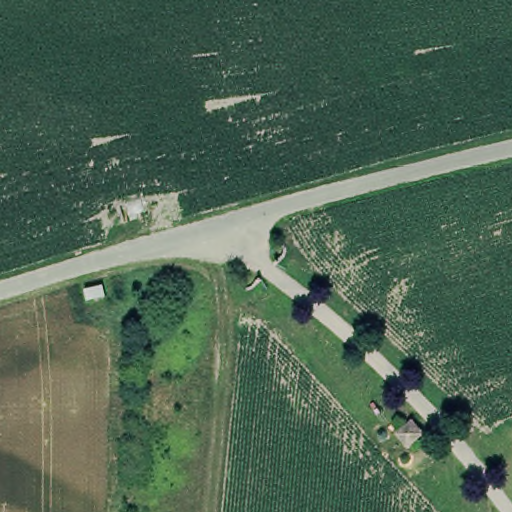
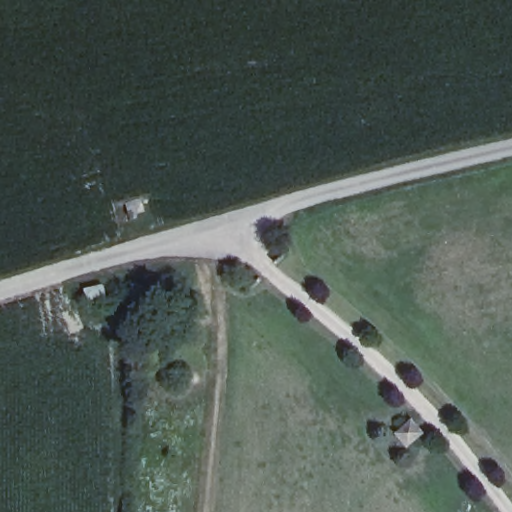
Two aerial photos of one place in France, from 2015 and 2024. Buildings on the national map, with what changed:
unchanged [(412,445),(400,432),(414,421),(424,433),(412,445)]

